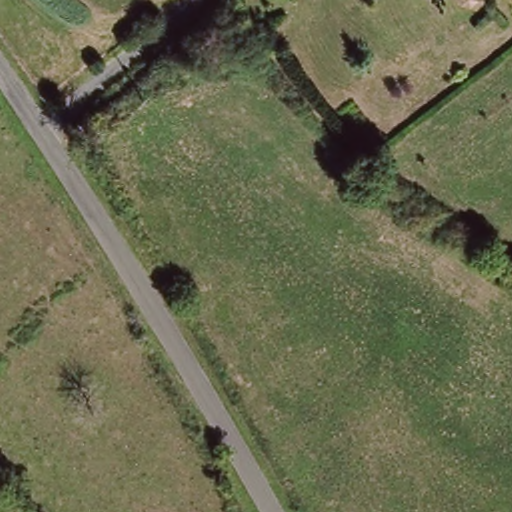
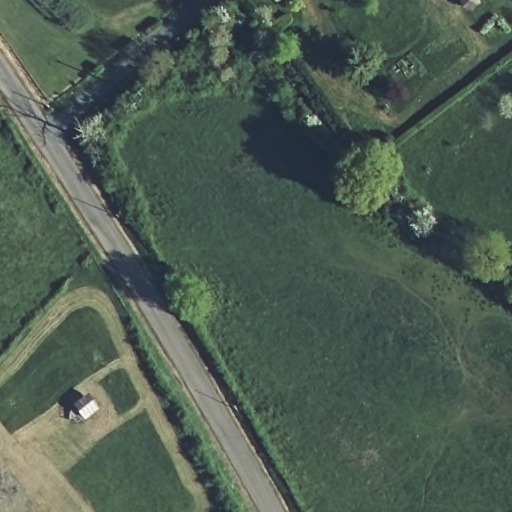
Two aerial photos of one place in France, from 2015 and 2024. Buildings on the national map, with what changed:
unchanged [(510,0),(512,0),(512,2),(510,0)]

